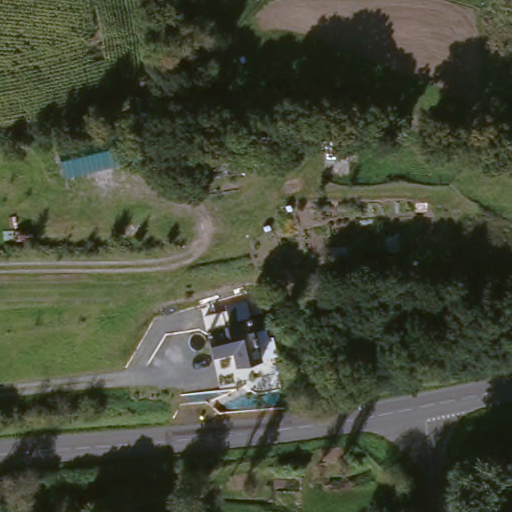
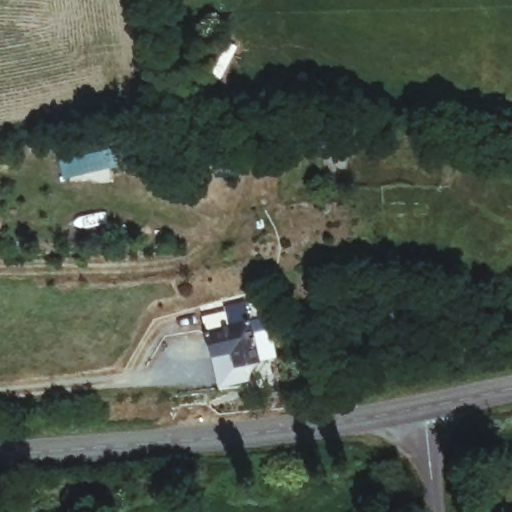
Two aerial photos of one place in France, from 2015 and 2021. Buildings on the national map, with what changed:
unchanged [(266,340),(261,318),(271,316),(276,337),(266,340)]
unchanged [(245,322),(254,357),(231,362),(226,346),(203,352),(199,331),(245,322)]

